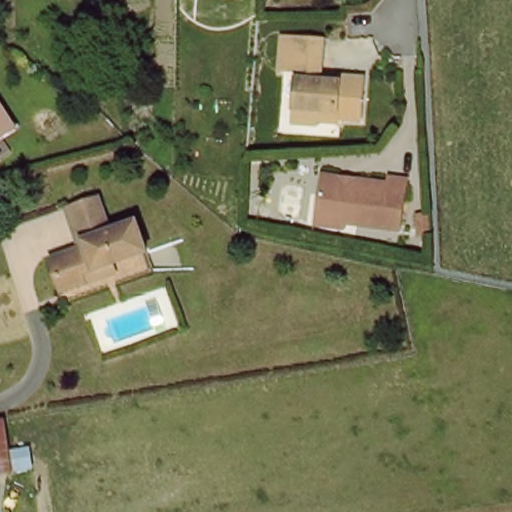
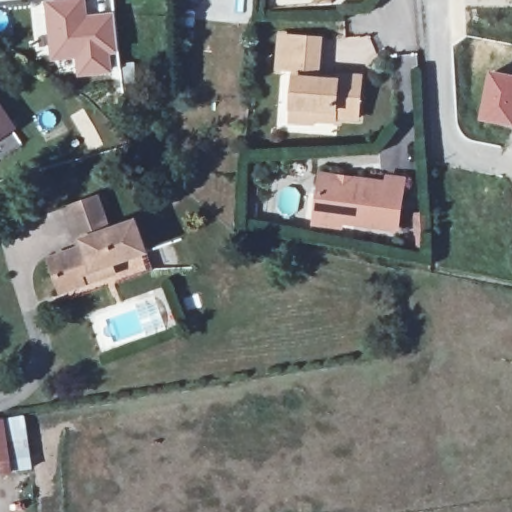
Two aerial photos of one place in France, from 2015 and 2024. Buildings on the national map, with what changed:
new [(120,55),(114,56),(115,72),(77,77),(75,59),(49,61),(46,39),(34,41),(29,1),(6,3),(5,0),(114,0),(120,55)]
unchanged [(296,100),(293,63),(281,64),(279,30),(317,28),(320,69),(341,68),(341,61),(364,60),(366,102),(348,104),(348,112),(325,113),(297,114),(296,100)]
new [(512,73),(512,127),(478,120),(488,69),(512,73)]
unchanged [(17,125),(0,136),(0,98),(17,125)]
unchanged [(390,173),(409,174),(406,223),(323,218),(326,175),(390,179),(390,173)]
unchanged [(82,285),(60,291),(51,259),(81,250),(70,209),(74,208),(102,200),(113,232),(136,226),(145,256),(110,267),(113,276),(82,285)]
unchanged [(4,419),(12,472),(0,474),(0,420),(4,419)]

